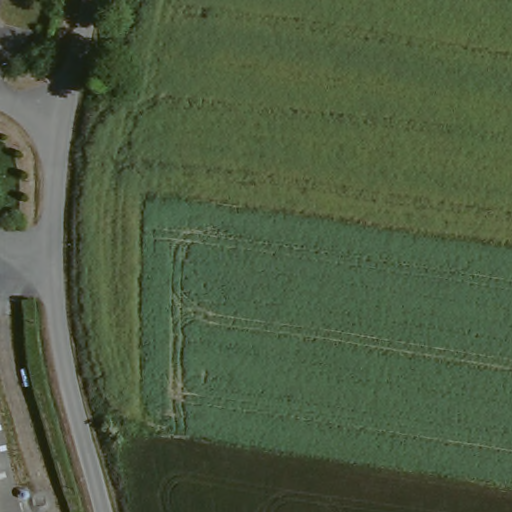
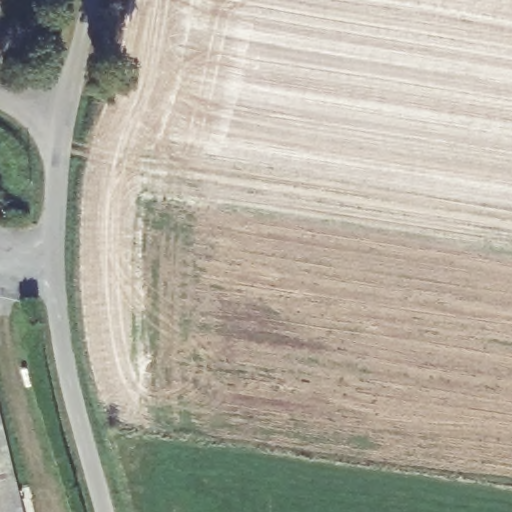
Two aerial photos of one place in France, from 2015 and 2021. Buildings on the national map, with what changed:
unchanged [(0,512),(0,409),(26,512),(0,512)]

